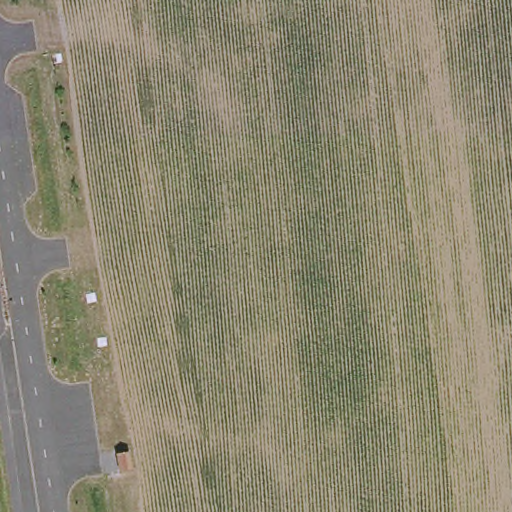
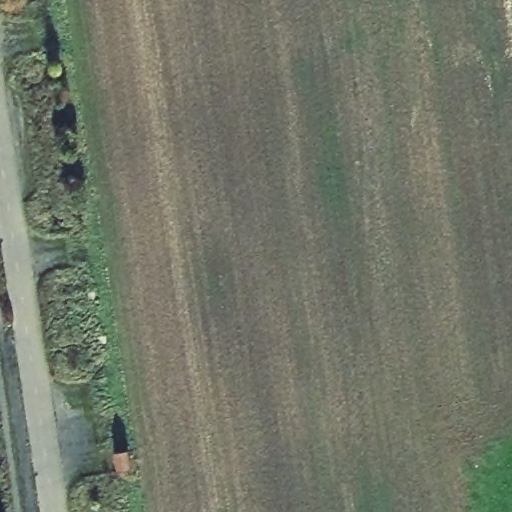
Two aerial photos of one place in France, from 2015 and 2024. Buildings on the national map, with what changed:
unchanged [(131,470),(120,472),(117,453),(128,451),(131,470)]

